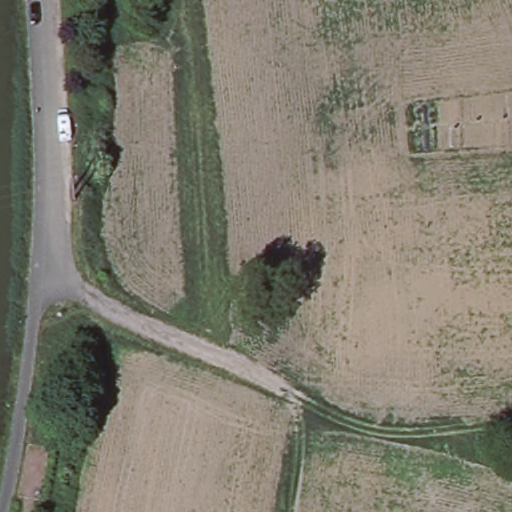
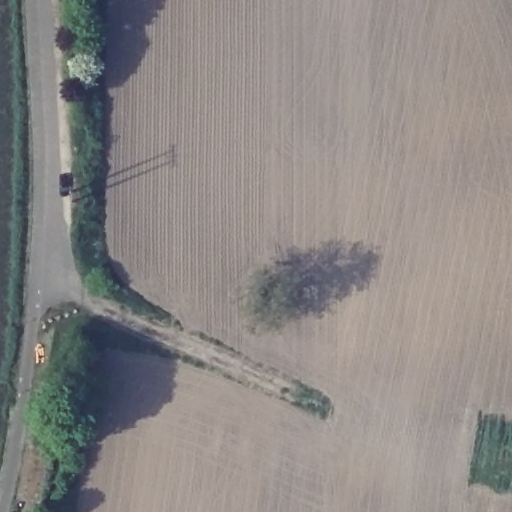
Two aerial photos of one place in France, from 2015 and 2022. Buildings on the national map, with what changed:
unchanged [(36,354),(63,354),(60,394),(35,394),(36,354)]

